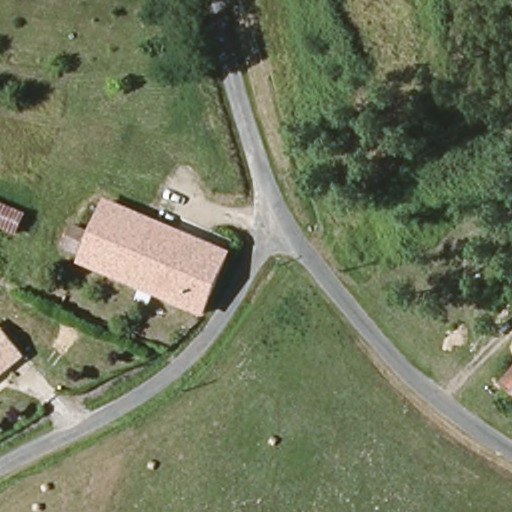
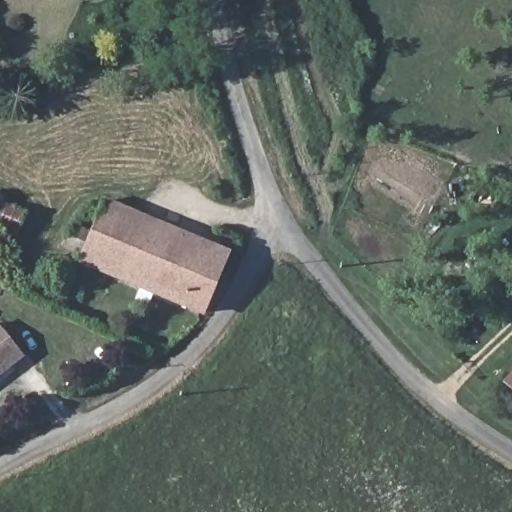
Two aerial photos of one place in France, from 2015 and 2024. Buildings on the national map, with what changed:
unchanged [(146,289),(85,263),(86,257),(71,251),(80,229),(97,237),(111,206),(232,257),(206,315),(159,295),(156,303),(141,297),(146,289)]
unchanged [(19,217),(11,236),(0,231),(0,208),(19,217)]
unchanged [(22,351),(0,370),(0,324),(22,351)]
unchanged [(80,332),(69,355),(55,347),(66,325),(80,332)]
unchanged [(512,383),(512,394),(507,389),(512,383)]

